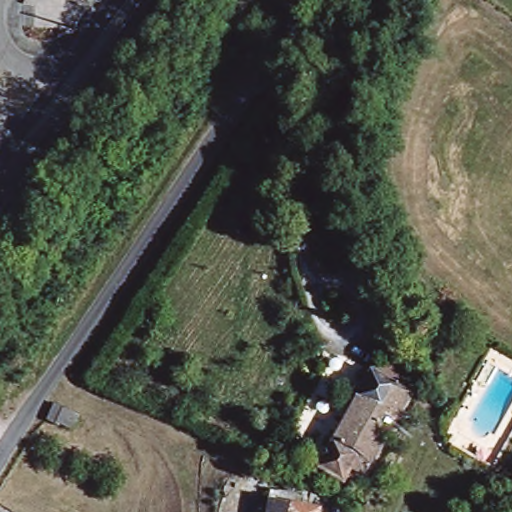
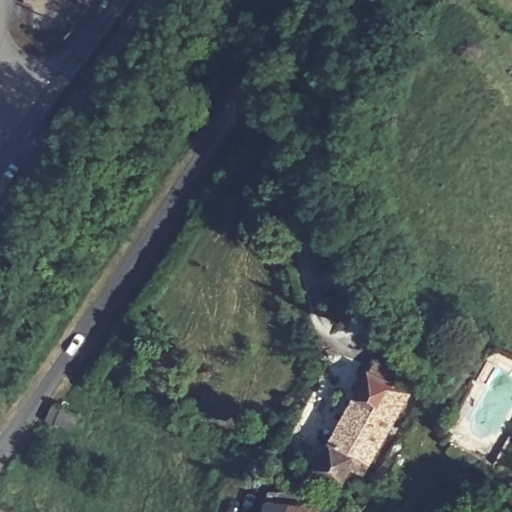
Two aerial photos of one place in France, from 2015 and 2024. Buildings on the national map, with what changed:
unchanged [(74,8),(61,0),(79,0),(74,8)]
unchanged [(352,458),(337,483),(309,468),(363,369),(373,353),(416,379),(410,392),(368,466),(352,458)]
unchanged [(76,432),(63,424),(60,427),(52,422),(62,405),(71,411),(85,419),(76,432)]
unchanged [(286,503),(284,512),(261,512),(265,498),(286,503)]
unchanged [(357,512),(335,512),(339,500),(348,504),(357,510),(357,512)]
unchanged [(316,512),(284,512),(286,503),(316,510),(316,512)]

